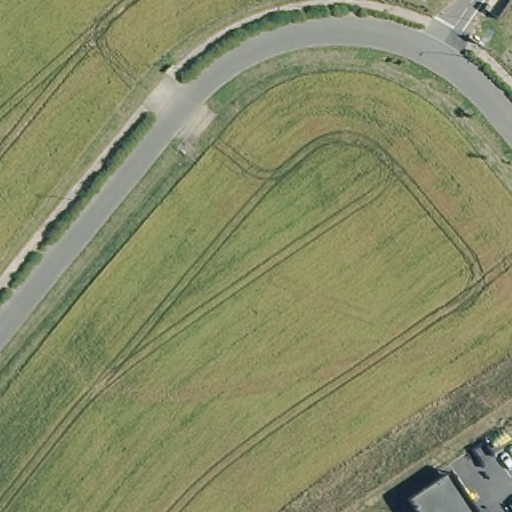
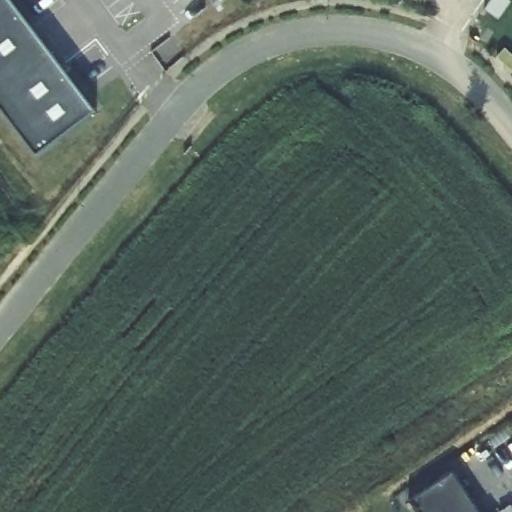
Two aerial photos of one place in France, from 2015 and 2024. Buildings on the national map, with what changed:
new [(34,158),(0,114),(0,0),(7,0),(95,114),(34,158)]
new [(511,4),(498,22),(483,13),(492,0),(505,0),(511,4)]
new [(512,58),(512,74),(497,60),(505,51),(512,58)]
unchanged [(455,469),(482,512),(420,512),(413,501),(455,469)]

